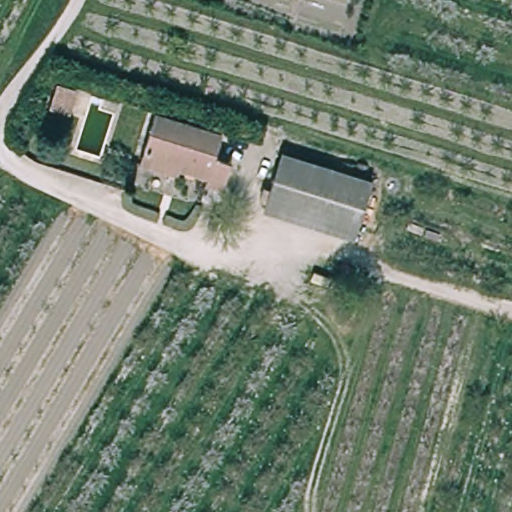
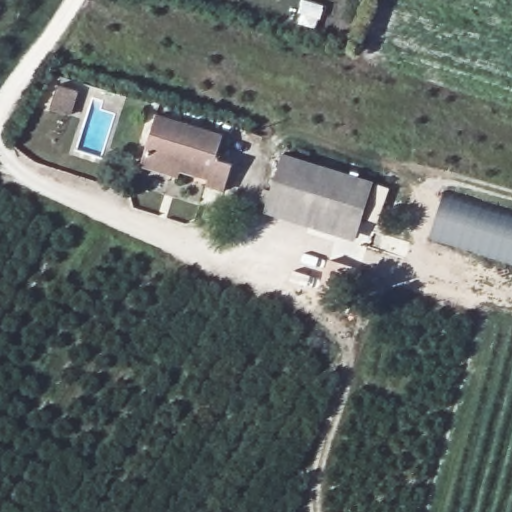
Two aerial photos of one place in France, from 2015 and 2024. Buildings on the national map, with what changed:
unchanged [(69,97),(61,121),(42,114),(50,91),(69,97)]
unchanged [(140,167),(143,159),(157,116),(228,136),(222,158),(236,162),(227,193),(211,187),(210,178),(182,172),(180,178),(140,167)]
unchanged [(336,223),(278,207),(291,157),(350,173),(336,223)]
unchanged [(378,181),(364,231),(336,223),(350,173),(378,181)]
new [(429,237),(445,189),(512,210),(512,264),(429,237)]

